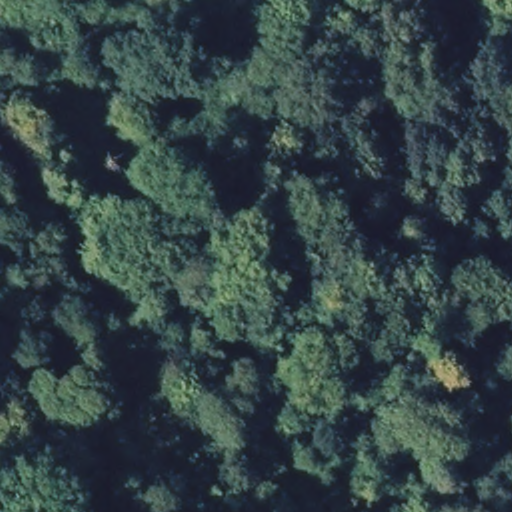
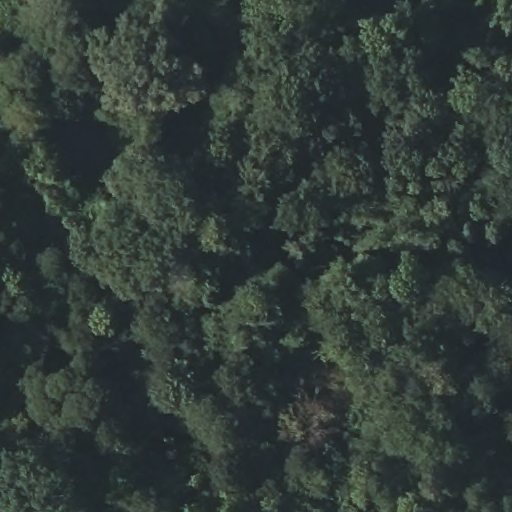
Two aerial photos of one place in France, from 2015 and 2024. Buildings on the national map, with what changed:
[]

